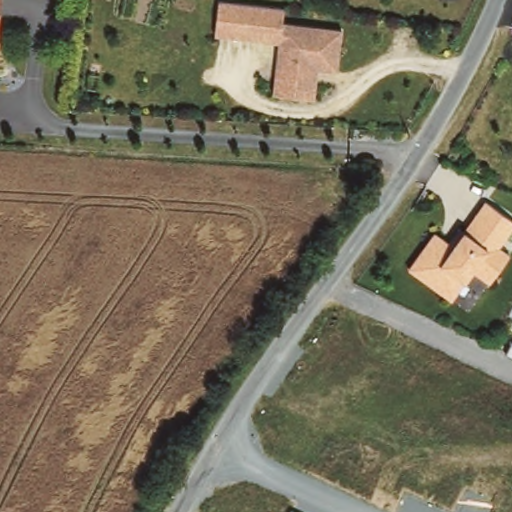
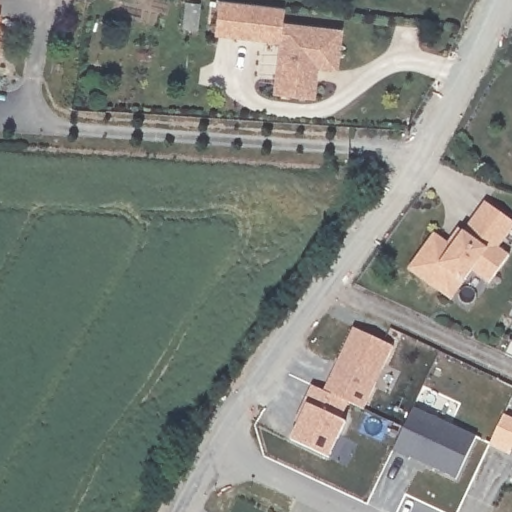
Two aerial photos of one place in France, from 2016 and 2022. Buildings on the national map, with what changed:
unchanged [(284,24),(340,29),(337,73),(318,72),(316,98),(274,97),(278,45),(215,37),(218,4),(284,10),(284,24)]
unchanged [(0,19),(0,15),(1,15),(0,19)]
unchanged [(455,247),(464,233),(485,203),(512,222),(512,230),(501,246),(500,247),(510,254),(490,285),(472,273),(466,282),(452,301),(408,272),(433,235),(455,247)]
new [(394,344),(365,409),(350,402),(342,419),(347,421),(331,457),(291,439),(308,403),(305,401),(313,384),(326,390),(354,327),(394,344)]
unchanged [(506,355),(512,342),(512,358),(506,355)]
new [(478,435),(458,478),(394,450),(416,405),(478,435)]
new [(512,416),(512,452),(511,454),(490,445),(505,413),(512,416)]

